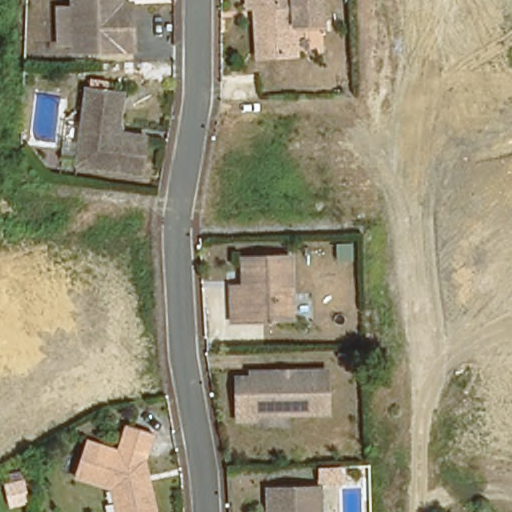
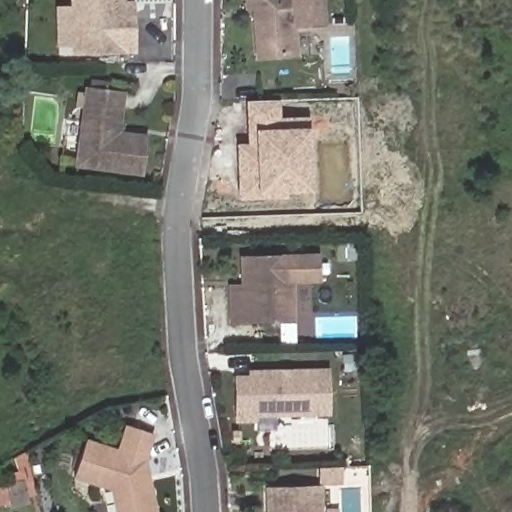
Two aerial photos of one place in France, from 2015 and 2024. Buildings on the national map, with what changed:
unchanged [(114,9),(129,9),(131,55),(74,57),(72,0),(113,0),(114,9)]
unchanged [(257,0),(324,0),(327,37),(302,39),(304,61),(260,64),(257,0)]
unchanged [(123,137),(150,142),(144,178),(79,169),(89,94),(127,99),(123,137)]
new [(287,197),(238,199),(235,143),(247,142),(244,100),(277,99),(279,117),(308,115),(309,127),(312,190),(284,192),(287,197)]
unchanged [(226,285),(239,284),(238,258),(292,255),(294,322),(229,325),(226,285)]
unchanged [(230,379),(244,379),(244,372),(321,373),(321,414),(252,413),(252,420),(230,420),(230,379)]
unchanged [(155,441),(149,464),(159,512),(118,512),(114,494),(79,484),(91,447),(121,457),(129,433),(155,441)]
unchanged [(324,494),(324,512),(271,512),(270,495),(324,494)]

